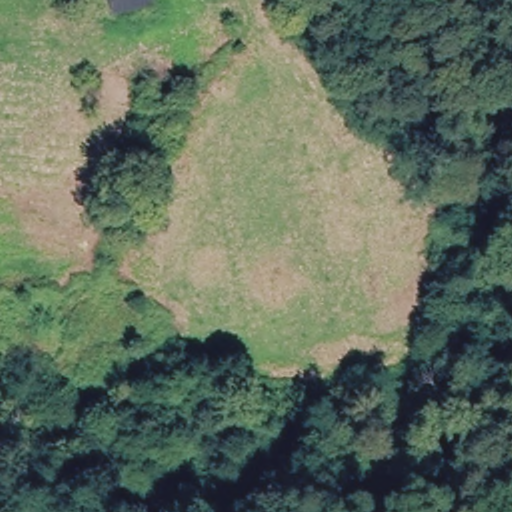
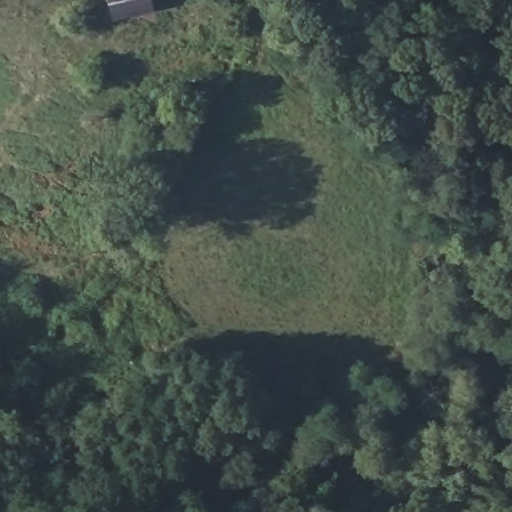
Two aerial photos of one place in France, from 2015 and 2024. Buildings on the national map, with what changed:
unchanged [(152,13),(116,20),(114,11),(111,0),(153,0),(149,1),(152,13)]

